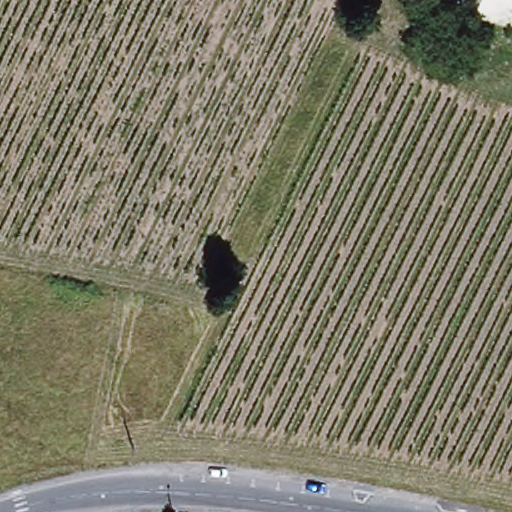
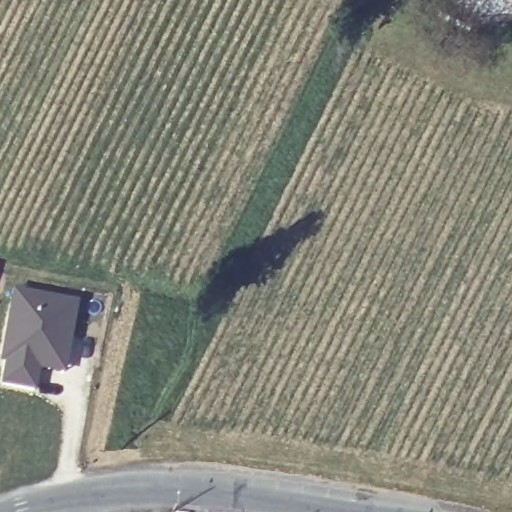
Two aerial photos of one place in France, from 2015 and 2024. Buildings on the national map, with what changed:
new [(5,355),(1,354),(8,306),(12,307),(15,292),(72,302),(61,372),(36,367),(32,390),(0,384),(0,381),(5,355)]

